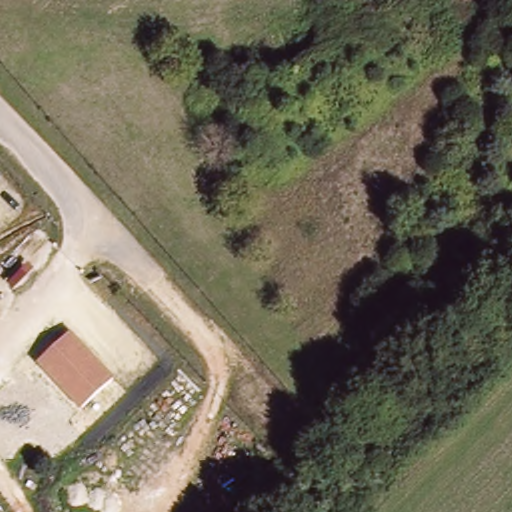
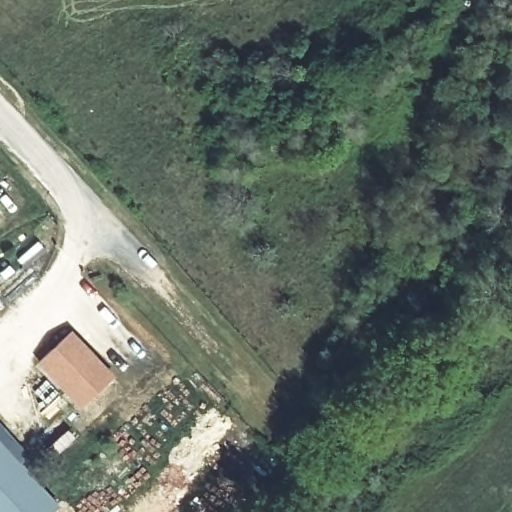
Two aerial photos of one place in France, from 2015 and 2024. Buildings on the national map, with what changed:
unchanged [(115,379),(84,409),(40,364),(70,334),(115,379)]
new [(40,488),(0,444),(0,426),(50,479),(40,488)]
new [(61,511),(60,512),(0,512),(0,444),(40,488),(61,511)]

